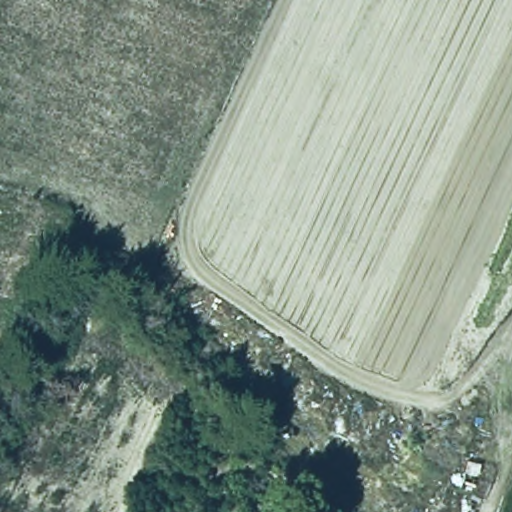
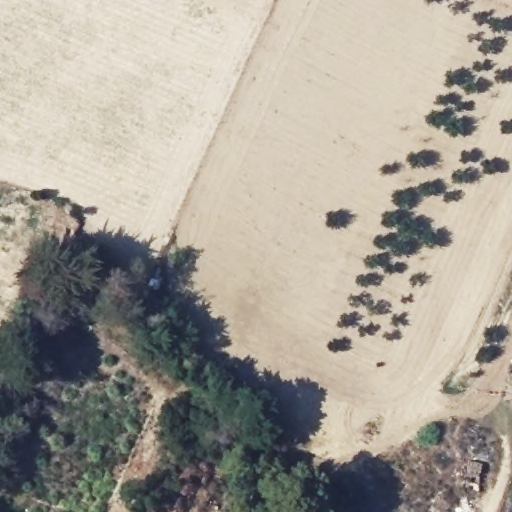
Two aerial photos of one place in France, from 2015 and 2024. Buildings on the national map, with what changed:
unchanged [(271,496),(266,512),(246,512),(241,510),(254,489),(271,496)]

